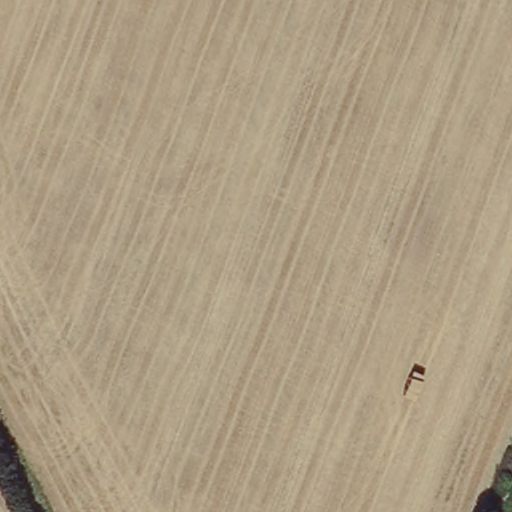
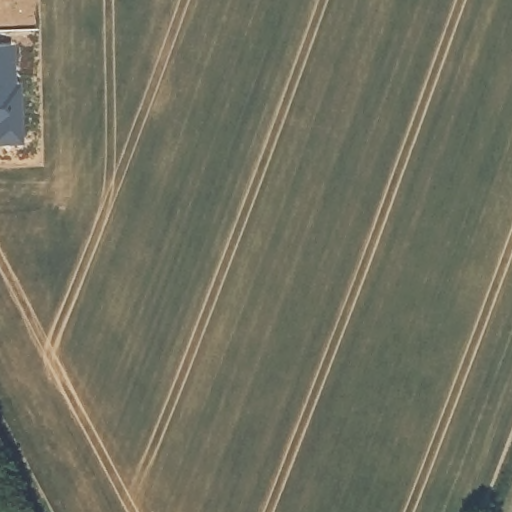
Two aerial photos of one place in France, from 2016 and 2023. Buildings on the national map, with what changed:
new [(12,45),(16,146),(0,145),(0,45),(12,45)]

